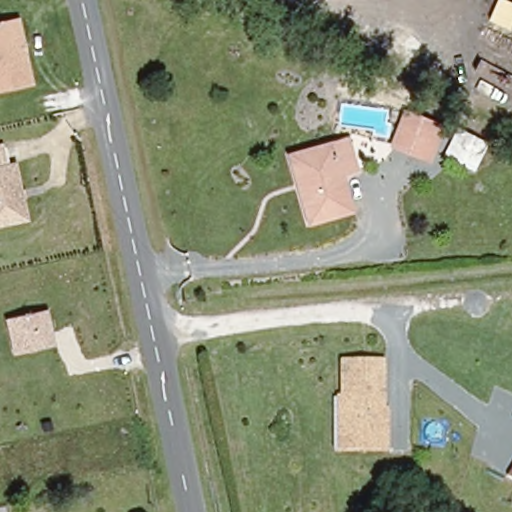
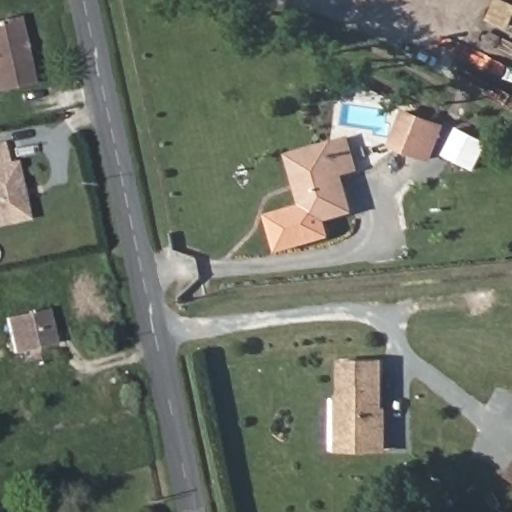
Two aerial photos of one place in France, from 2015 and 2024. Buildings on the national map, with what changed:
unchanged [(32,80),(0,88),(0,20),(17,18),(32,80)]
unchanged [(393,147),(409,115),(438,129),(421,161),(393,147)]
unchanged [(7,163),(17,161),(30,221),(0,227),(0,144),(3,143),(7,163)]
unchanged [(300,210),(289,155),(351,144),(355,162),(340,164),(348,202),(300,210)]
new [(348,202),(356,211),(327,220),(332,235),(278,251),(267,213),(299,204),(300,210),(323,206),(348,202)]
unchanged [(49,310),(55,342),(12,352),(6,319),(49,310)]
unchanged [(353,449),(341,360),(382,356),(392,445),(353,449)]
unchanged [(507,478),(512,469),(512,481),(507,478)]

